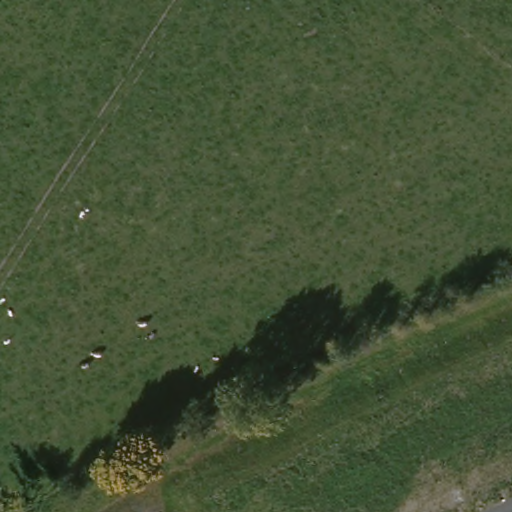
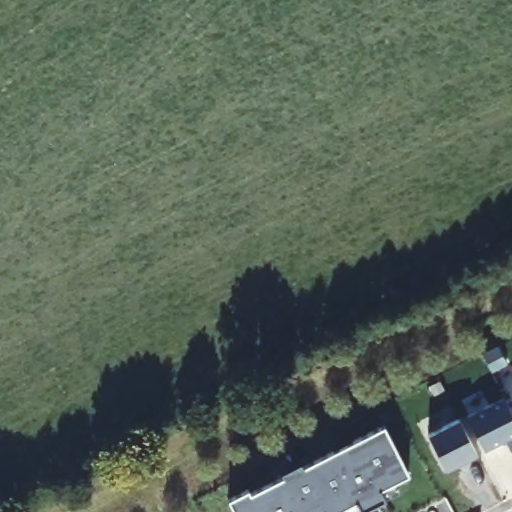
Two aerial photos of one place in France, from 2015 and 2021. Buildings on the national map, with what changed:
new [(504,399),(512,415),(512,449),(508,451),(502,440),(483,449),(466,416),(504,399)]
new [(460,421),(478,456),(447,472),(429,437),(460,421)]
new [(249,492),(250,496),(284,479),(282,475),(301,465),(303,469),(334,454),(353,444),(385,428),(410,478),(395,485),(400,496),(387,503),(369,512),(345,512),(344,511),(342,512),(234,512),(229,502),(249,492)]

